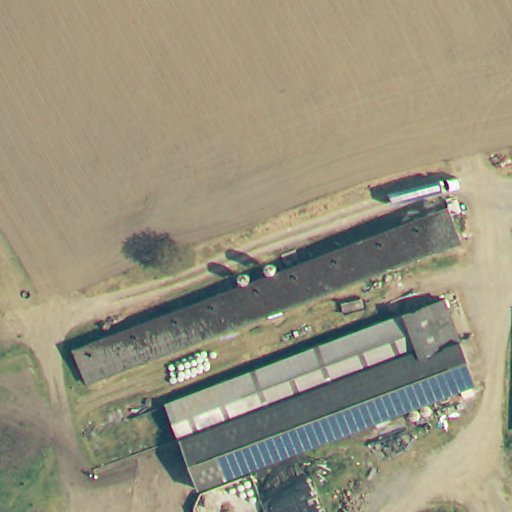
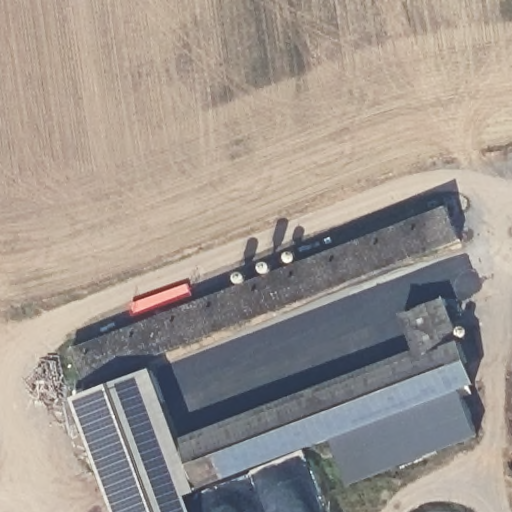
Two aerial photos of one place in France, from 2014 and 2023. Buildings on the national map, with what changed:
unchanged [(448,209),(461,242),(85,388),(71,355),(448,209)]
unchanged [(439,303),(452,338),(413,353),(400,318),(439,303)]
unchanged [(400,318),(413,353),(452,338),(471,386),(193,493),(161,411),(400,318)]
new [(193,493),(189,495),(195,512),(116,512),(72,398),(152,368),(168,408),(161,411),(193,493)]
new [(460,390),(477,436),(350,486),(333,439),(460,390)]

